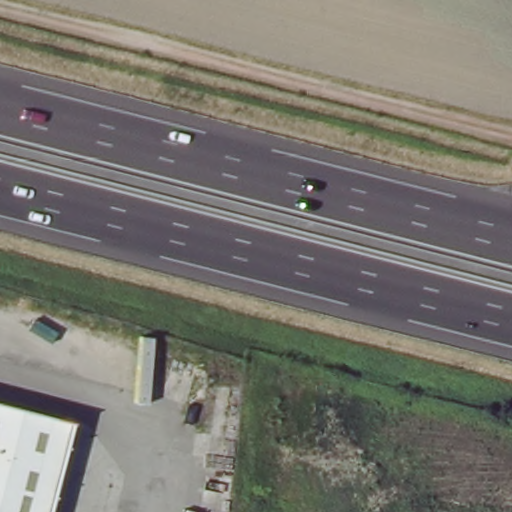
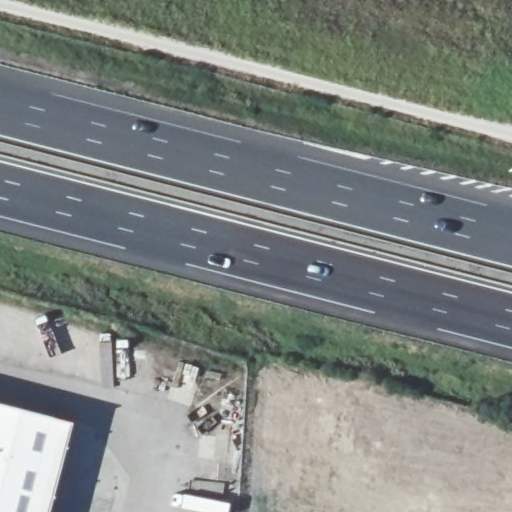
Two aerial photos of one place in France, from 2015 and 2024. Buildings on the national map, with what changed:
unchanged [(74,427),(50,512),(0,512),(0,406),(74,427)]

